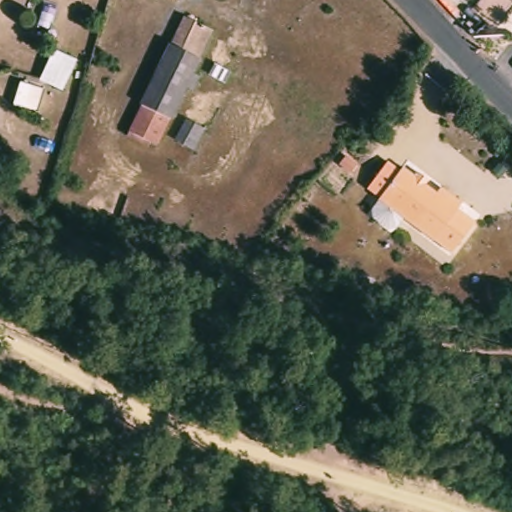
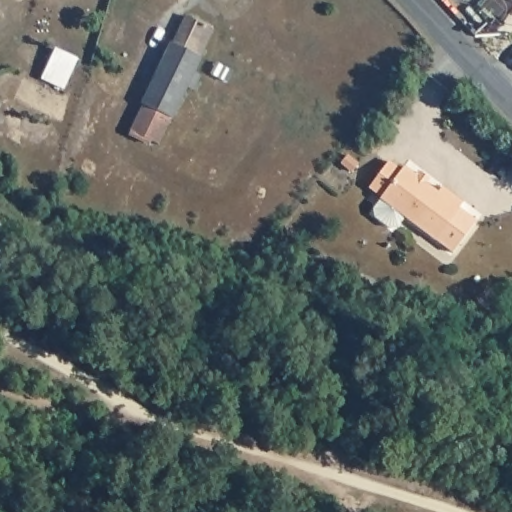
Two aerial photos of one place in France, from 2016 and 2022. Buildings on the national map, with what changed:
unchanged [(168,127),(158,148),(129,135),(140,113),(184,21),(213,34),(168,127)]
unchanged [(227,72),(216,66),(227,44),(238,50),(227,72)]
unchanged [(64,87),(41,77),(54,48),(78,59),(64,87)]
unchanged [(443,184),(463,200),(459,206),(475,219),(451,249),(436,236),(434,238),(405,215),(401,219),(391,226),(373,212),(381,196),(380,195),(382,194),(370,185),(389,159),(401,168),(404,164),(418,174),(421,168),(430,175),(426,181),(438,190),(443,184)]

